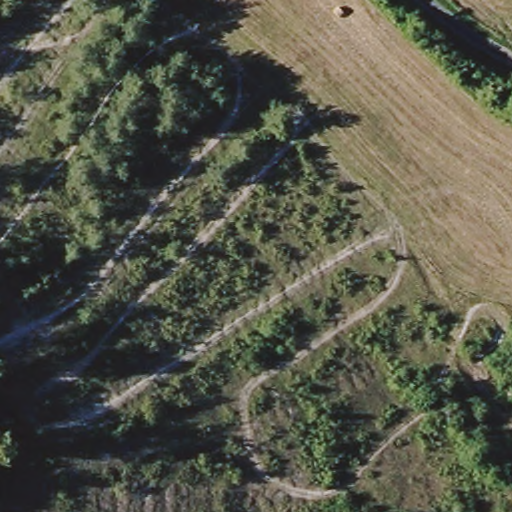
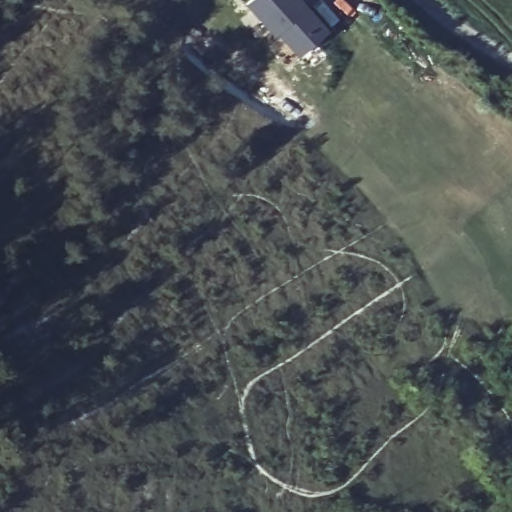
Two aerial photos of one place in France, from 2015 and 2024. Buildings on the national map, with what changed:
new [(246,1),(248,0),(300,0),(326,31),(298,55),(277,31),(274,34),(267,26),(246,1)]

